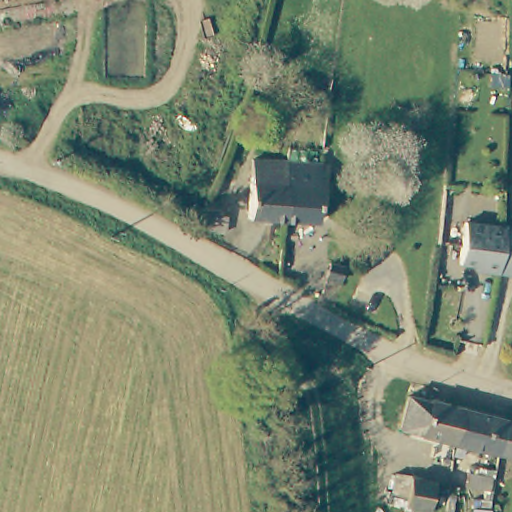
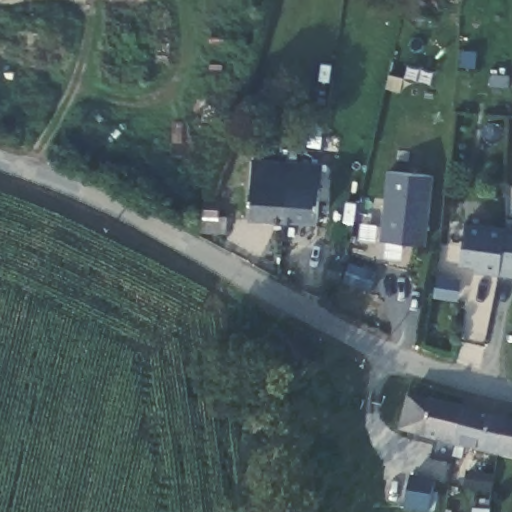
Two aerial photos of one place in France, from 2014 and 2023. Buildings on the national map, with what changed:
unchanged [(251,217),(258,160),(292,163),(286,221),(251,217)]
unchanged [(326,169),(321,224),(286,221),(292,163),(326,166),(326,169)]
new [(424,245),(380,241),(388,170),(432,175),(424,245)]
unchanged [(215,207),(212,221),(196,218),(201,203),(204,205),(215,207)]
unchanged [(510,245),(510,238),(511,222),(512,223),(512,271),(504,270),(505,266),(510,245)]
unchanged [(510,245),(505,266),(504,270),(502,285),(488,282),(488,277),(466,272),(474,231),(510,238),(510,245)]
unchanged [(326,282),(333,267),(346,273),(341,288),(326,282)]
unchanged [(398,430),(401,398),(424,406),(426,402),(461,412),(452,448),(398,430)]
unchanged [(461,412),(506,423),(502,447),(499,460),(452,448),(461,412)]
unchanged [(506,423),(512,425),(512,463),(506,462),(499,460),(502,447),(506,423)]
unchanged [(440,486),(435,512),(412,512),(409,511),(414,481),(440,486)]

